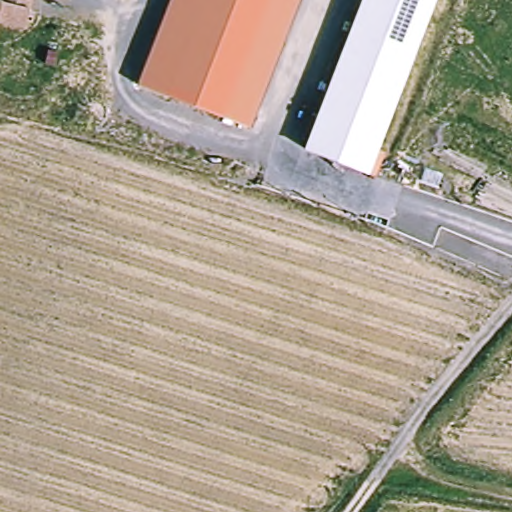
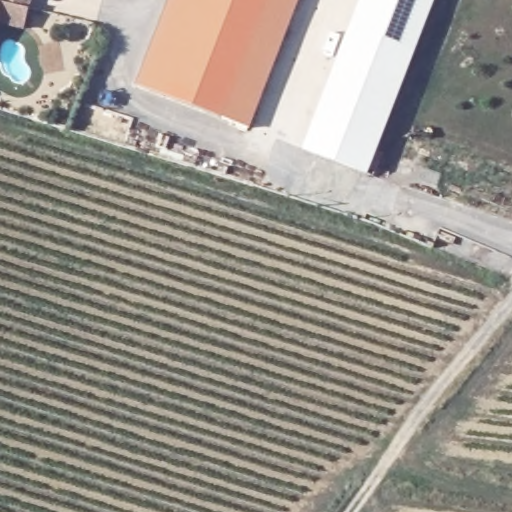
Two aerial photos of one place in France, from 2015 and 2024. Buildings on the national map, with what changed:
unchanged [(0,2),(1,0),(34,0),(27,29),(0,24),(0,2)]
unchanged [(135,86),(169,0),(299,0),(259,101),(248,128),(220,120),(135,86)]
unchanged [(306,147),(364,0),(429,0),(365,168),(306,147)]

